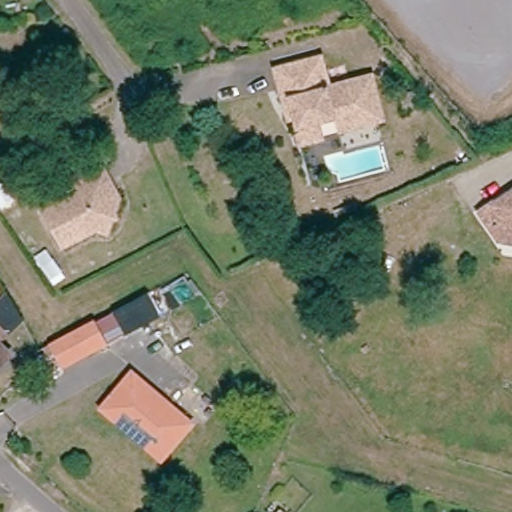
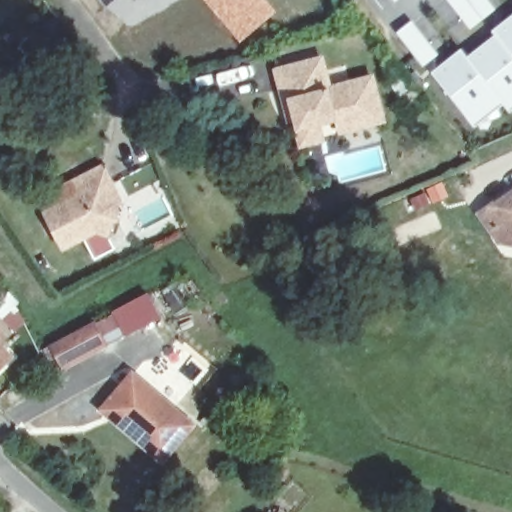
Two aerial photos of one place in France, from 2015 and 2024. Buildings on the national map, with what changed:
new [(277,11),(239,43),(204,0),(268,0),(277,11)]
new [(470,26),(449,0),(488,0),(495,8),(470,26)]
new [(461,47),(467,56),(495,34),(490,30),(512,13),(512,107),(508,110),(501,102),(475,125),(431,72),(461,47)]
unchanged [(299,145),(295,130),(291,119),(287,120),(281,100),(272,70),(318,56),(326,86),(369,75),(381,118),(358,125),(336,131),(335,125),(331,114),(315,119),(316,124),(320,139),(299,145)]
unchanged [(424,89),(429,105),(413,110),(408,93),(424,89)]
unchanged [(74,185),(101,170),(110,187),(119,202),(110,207),(117,222),(112,225),(109,237),(95,234),(64,251),(45,217),(80,198),(74,185)]
unchanged [(512,187),(512,194),(508,189),(512,187)]
unchanged [(488,225),(477,210),(490,201),(494,206),(512,194),(512,246),(501,245),(488,225)]
unchanged [(77,358),(65,336),(107,315),(119,336),(77,358)]
unchanged [(1,340),(0,340),(0,338),(1,340)]
unchanged [(10,360),(0,369),(0,350),(10,360)]
unchanged [(101,411),(133,375),(190,423),(162,459),(101,411)]

